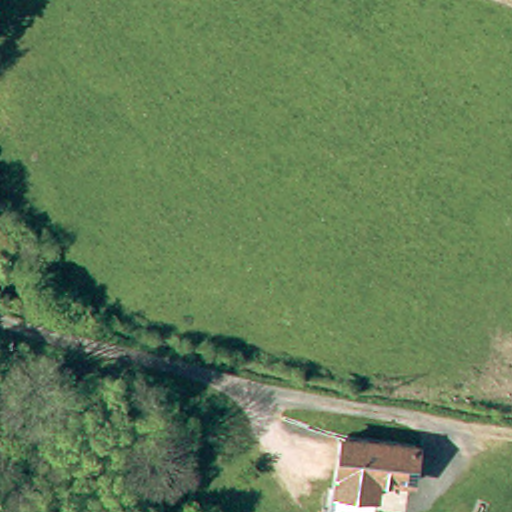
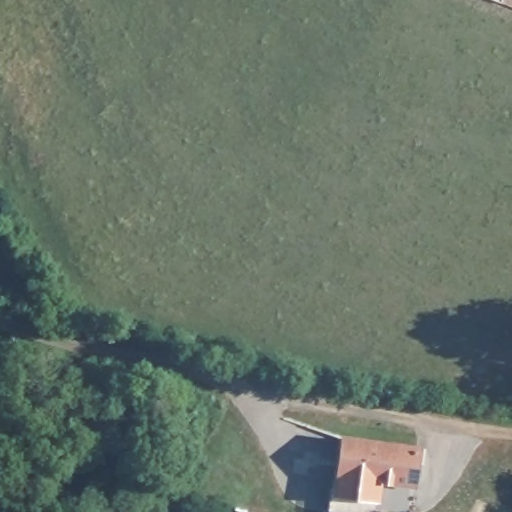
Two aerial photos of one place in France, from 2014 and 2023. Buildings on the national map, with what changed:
unchanged [(413,431),(413,442),(411,510),(385,510),(385,512),(376,512),(376,510),(336,507),(340,429),(413,431)]

